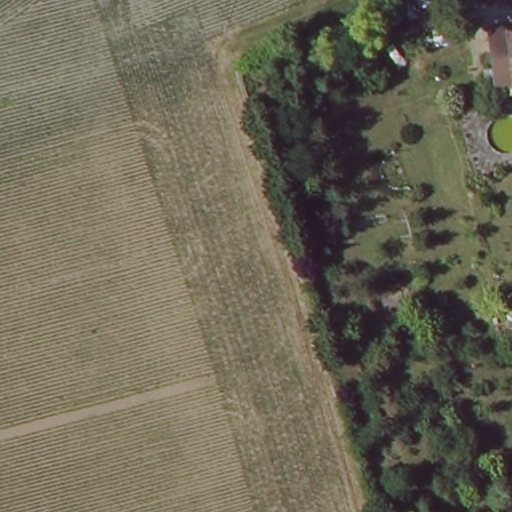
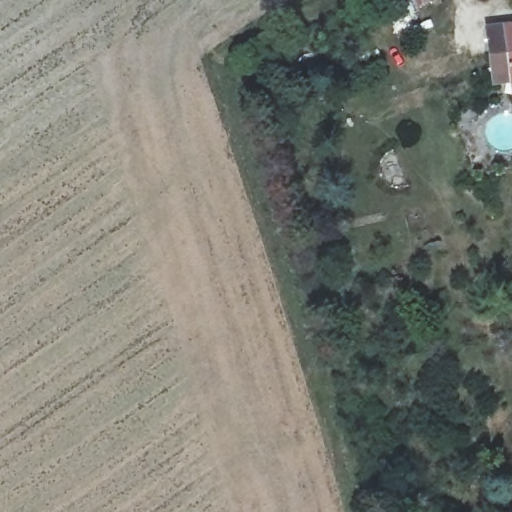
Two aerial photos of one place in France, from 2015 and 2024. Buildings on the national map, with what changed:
unchanged [(507,74),(489,76),(482,31),(512,26),(512,94),(507,74)]

